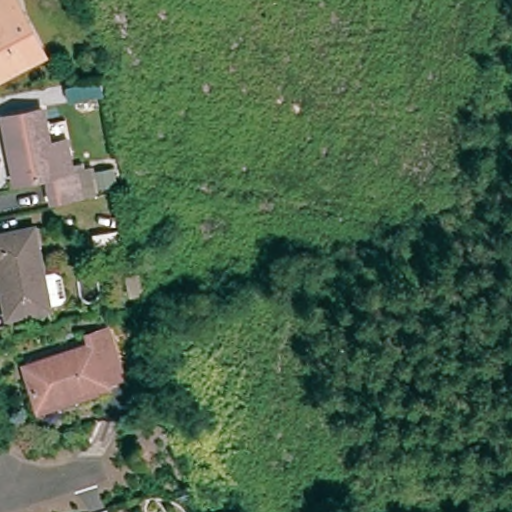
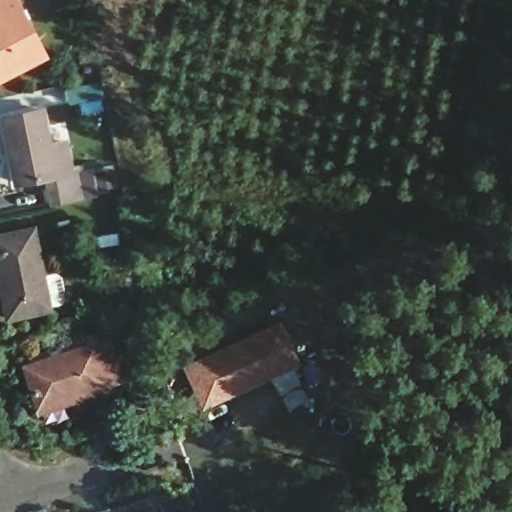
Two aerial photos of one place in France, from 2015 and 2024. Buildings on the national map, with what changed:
unchanged [(9,0),(40,56),(4,77),(0,79),(0,2),(3,0),(9,0)]
unchanged [(10,166),(2,123),(41,116),(47,149),(63,146),(70,177),(76,176),(82,204),(52,211),(48,191),(56,190),(54,180),(21,186),(14,187),(10,166)]
unchanged [(94,174),(114,170),(119,190),(99,194),(94,174)]
unchanged [(0,242),(33,235),(49,313),(6,322),(0,290),(0,242)]
new [(200,410),(182,366),(282,321),(300,364),(200,410)]
unchanged [(40,414),(38,407),(26,371),(91,351),(88,342),(103,337),(118,382),(103,386),(105,394),(40,414)]

